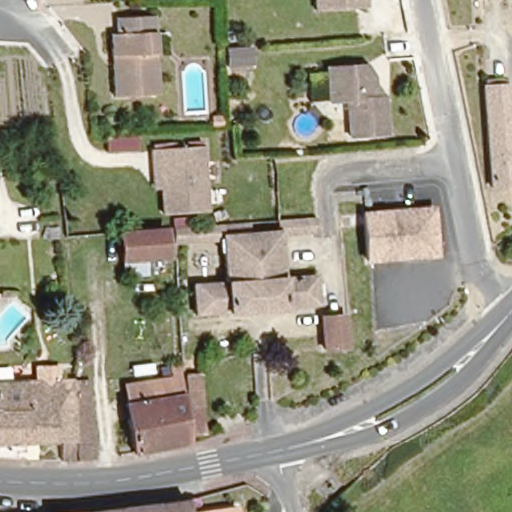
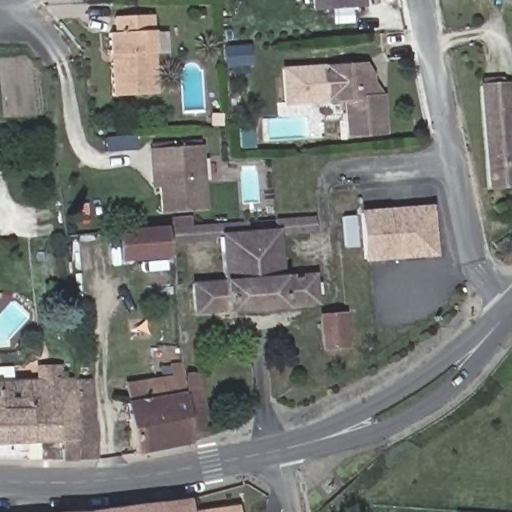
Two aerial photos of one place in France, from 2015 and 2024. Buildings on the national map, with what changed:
unchanged [(309,13),(308,0),(357,0),(358,11),(309,13)]
unchanged [(152,94),(111,94),(108,32),(113,31),(114,15),(149,16),(152,94)]
new [(281,106),(278,68),(325,65),(325,69),(326,102),(281,106)]
unchanged [(369,75),(370,100),(380,99),(381,136),(344,138),(343,101),(326,102),(325,69),(363,66),(369,75)]
unchanged [(480,97),(503,95),(509,169),(484,171),(480,97)]
unchanged [(203,215),(160,215),(159,167),(152,167),(152,151),(201,150),(203,215)]
unchanged [(430,206),(433,252),(388,255),(385,209),(430,206)]
unchanged [(246,228),(273,226),(273,217),(338,212),(385,209),(388,255),(368,257),(364,222),(340,224),(341,227),(281,229),(285,276),(314,274),(316,302),(197,311),(195,283),(226,280),(223,237),(169,241),(168,226),(222,222),(246,220),(246,228)]
unchanged [(118,230),(163,228),(164,253),(120,255),(118,230)]
unchanged [(345,350),(326,352),(324,318),(343,318),(345,350)]
demolished [(306,342),(326,367),(311,378),(292,354),(306,342)]
unchanged [(63,443),(0,443),(0,383),(36,382),(35,372),(48,372),(49,382),(72,382),(79,462),(64,462),(63,443)]
unchanged [(198,373),(204,436),(188,441),(182,375),(198,373)]
unchanged [(188,441),(135,452),(127,405),(130,404),(128,382),(182,375),(188,441)]
unchanged [(88,381),(99,461),(79,462),(72,382),(88,381)]
unchanged [(91,511),(188,502),(190,512),(92,512),(91,511)]
unchanged [(57,509),(91,511),(92,512),(57,512),(57,509)]

